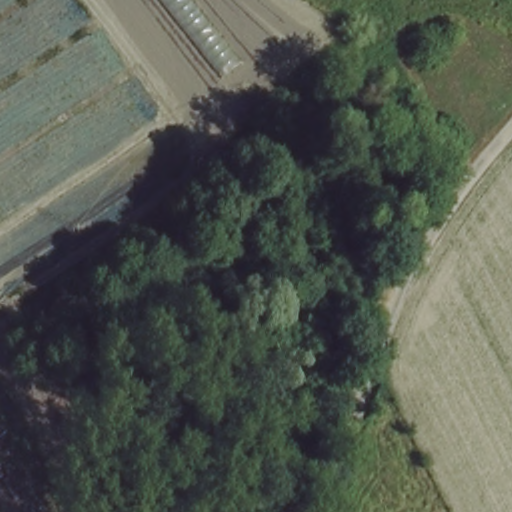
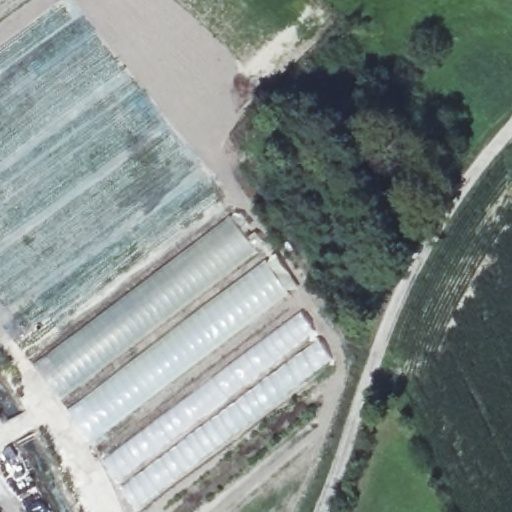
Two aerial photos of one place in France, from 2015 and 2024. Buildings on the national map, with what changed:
new [(230,217),(256,252),(58,399),(34,364),(230,217)]
new [(265,262),(285,297),(87,443),(70,413),(265,262)]
new [(301,310),(314,333),(117,482),(102,457),(301,310)]

